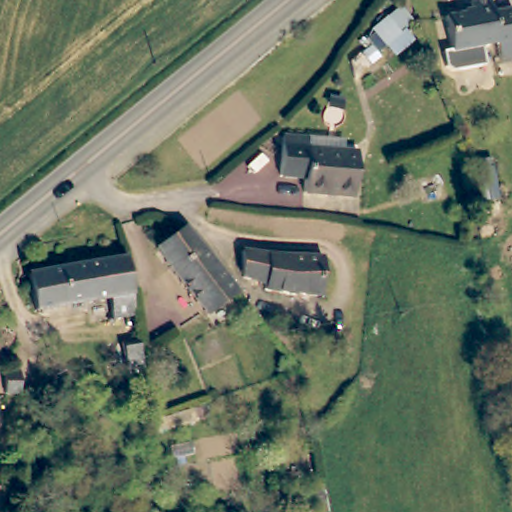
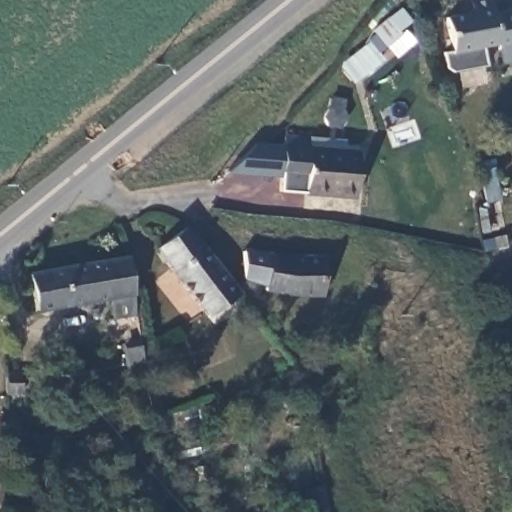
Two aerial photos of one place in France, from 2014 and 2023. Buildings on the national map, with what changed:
unchanged [(447,69),(441,65),(438,49),(447,48),(441,14),(470,9),(469,0),(488,0),(490,9),(510,6),(512,16),(512,43),(495,46),(493,40),(478,43),(481,63),(447,69)]
unchanged [(374,29),(390,17),(402,32),(385,45),(374,29)]
unchanged [(310,139),(310,149),(355,152),(353,197),(305,195),(306,180),(281,178),(282,139),(310,139)]
unchanged [(237,291),(209,315),(156,250),(185,227),(237,291)]
unchanged [(320,256),(318,293),(262,289),(262,284),(242,276),(242,249),(320,256)]
unchanged [(106,297),(31,309),(25,274),(122,258),(130,293),(132,314),(125,315),(109,317),(106,297)]

